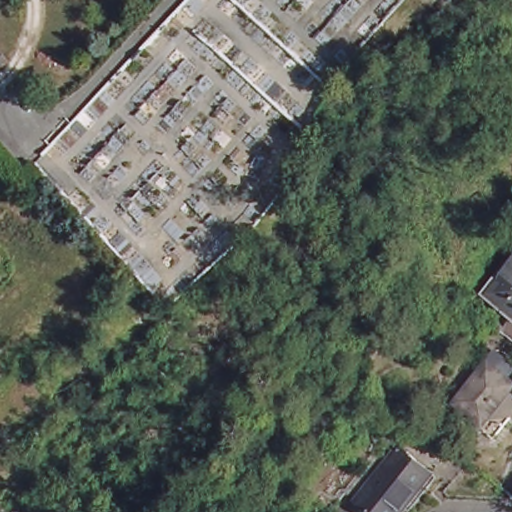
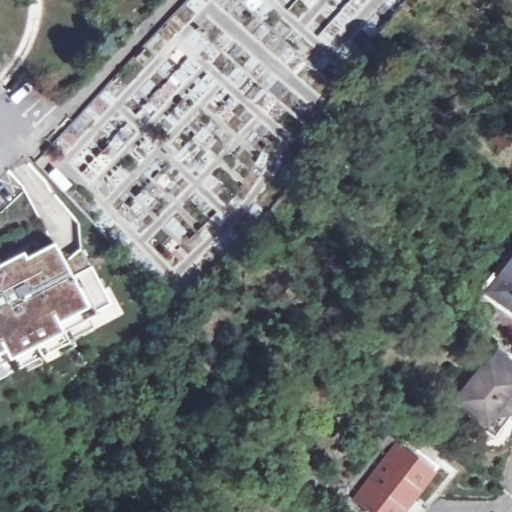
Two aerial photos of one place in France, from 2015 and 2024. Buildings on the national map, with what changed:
unchanged [(52,171),(67,187),(61,192),(47,176),(52,171)]
new [(50,244),(60,264),(78,249),(108,304),(85,316),(85,317),(0,362),(0,271),(50,244)]
unchanged [(486,287),(512,253),(512,306),(505,302),(486,287)]
new [(85,317),(91,329),(0,377),(0,362),(85,317)]
unchanged [(476,381),(474,379),(479,372),(482,374),(490,363),(510,378),(501,389),(509,395),(505,399),(508,425),(488,452),(472,439),(476,433),(451,413),(476,381)]
unchanged [(401,449),(415,460),(433,475),(429,481),(404,512),(370,512),(358,503),(401,449)]

